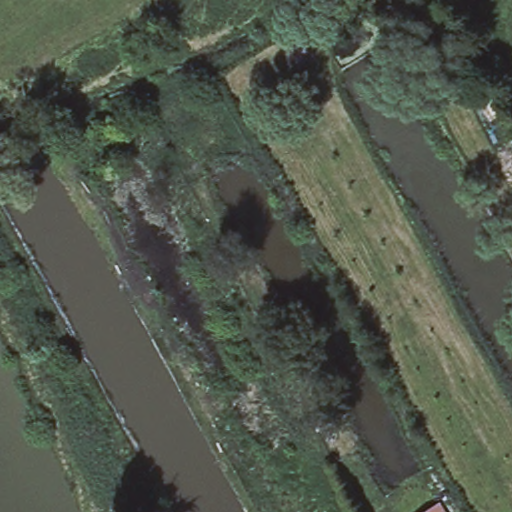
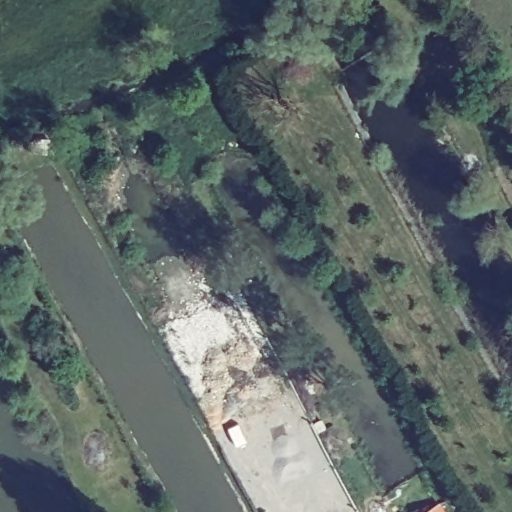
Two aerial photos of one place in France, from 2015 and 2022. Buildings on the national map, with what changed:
unchanged [(447,512),(421,512),(440,500),(447,512)]

